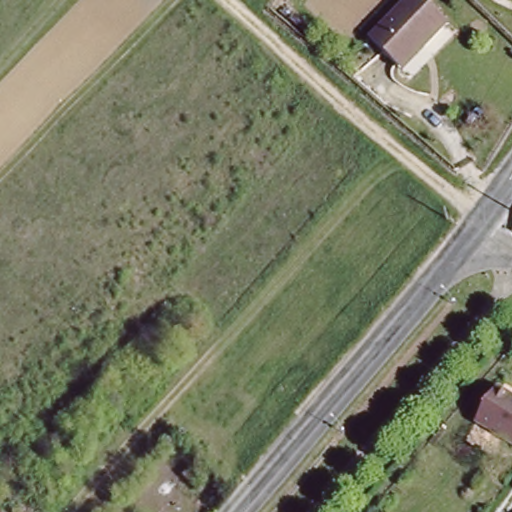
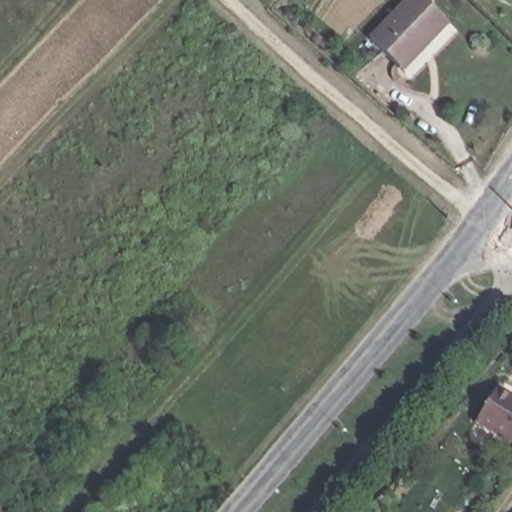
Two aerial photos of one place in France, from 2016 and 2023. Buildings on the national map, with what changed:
unchanged [(399,62),(375,35),(414,0),(434,0),(455,24),(432,45),(405,70),(399,62)]
unchanged [(512,397),(512,446),(476,425),(497,388),(512,397)]

